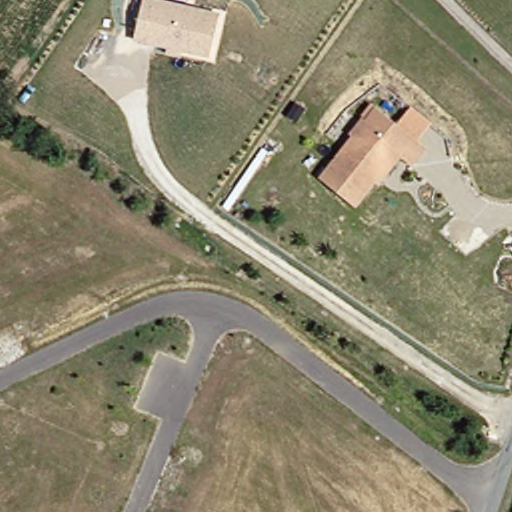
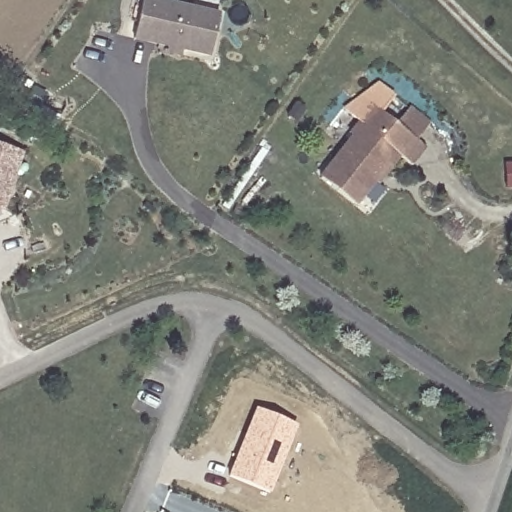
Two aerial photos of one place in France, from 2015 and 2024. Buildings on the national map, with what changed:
unchanged [(216,19),(207,60),(131,44),(140,2),(216,19)]
unchanged [(425,145),(409,162),(393,151),(352,202),(317,176),(374,106),(425,145)]
new [(0,209),(0,145),(21,152),(1,209),(0,209)]
new [(512,190),(511,166),(512,165),(512,190)]
new [(268,495),(227,477),(254,408),(297,426),(268,495)]

